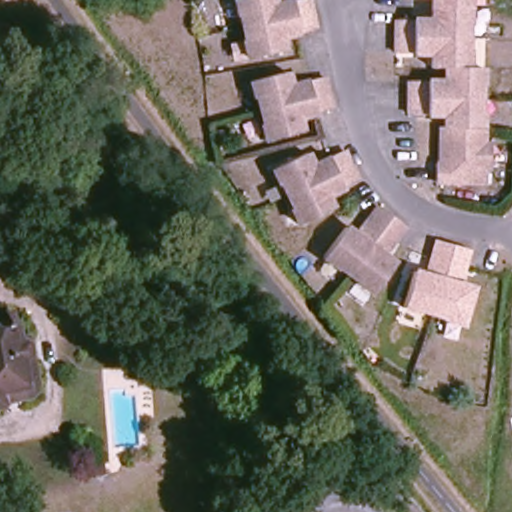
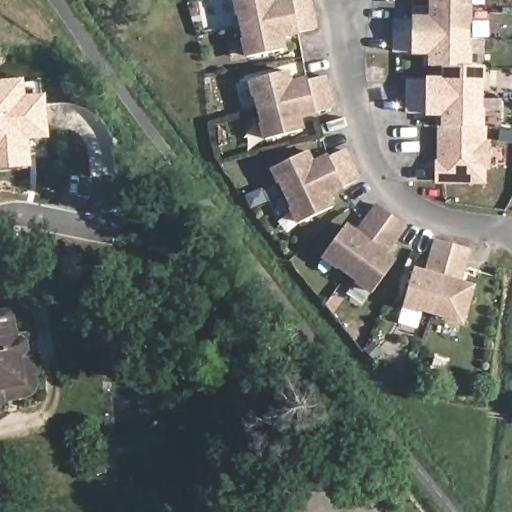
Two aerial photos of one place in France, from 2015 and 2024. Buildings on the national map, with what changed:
unchanged [(314,0),(316,9),(320,33),(285,40),(287,54),(248,61),(245,41),(247,41),(243,20),(241,20),(238,7),(237,0),(240,0),(277,0),(278,7),(314,0)]
unchanged [(473,29),(471,29),(470,49),(473,49),(473,69),(487,69),(486,89),(484,89),(484,109),(486,109),(486,149),(488,149),(488,169),(486,169),(486,184),(438,184),(438,166),(442,166),(443,129),(446,129),(446,117),(410,117),(411,83),(446,83),(447,69),(436,69),(436,55),(400,55),(400,22),(436,22),(436,12),(436,0),(473,0),(473,12),(473,29)]
unchanged [(294,88),(329,79),(337,112),(302,120),(305,134),(267,143),(262,124),(264,123),(259,102),(257,103),(252,83),(290,74),(294,88)]
new [(24,84),(36,83),(36,96),(46,95),(49,139),(44,140),(45,152),(31,153),(33,168),(0,171),(0,82),(24,80),(24,84)]
unchanged [(315,168),(348,153),(362,184),(329,198),(335,211),(298,227),(290,209),(293,208),(284,188),(282,189),(273,171),(309,155),(315,168)]
unchanged [(355,237),(377,209),(403,229),(382,258),(393,266),(369,297),(353,285),(355,283),(337,271),(336,273),(320,260),(344,229),(355,237)]
unchanged [(426,277),(436,243),(468,252),(458,287),(471,291),(460,329),(441,323),(442,321),(421,315),(421,317),(401,311),(412,274),(426,277)]
unchanged [(2,395),(5,408),(0,409),(0,320),(15,318),(20,349),(26,391),(2,395)]
unchanged [(33,348),(41,403),(5,408),(2,395),(26,391),(20,349),(33,348)]
unchanged [(510,433),(507,418),(512,417),(512,433),(510,433)]

